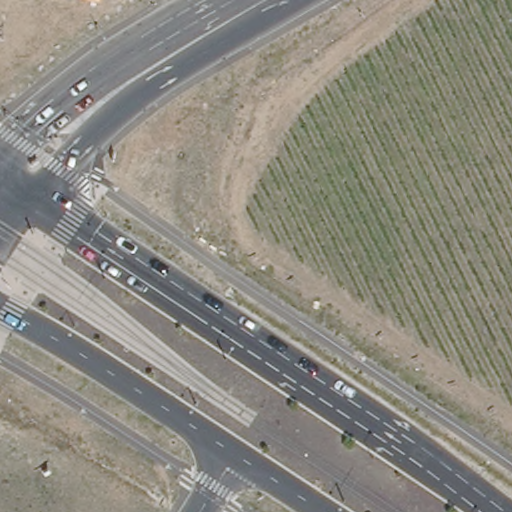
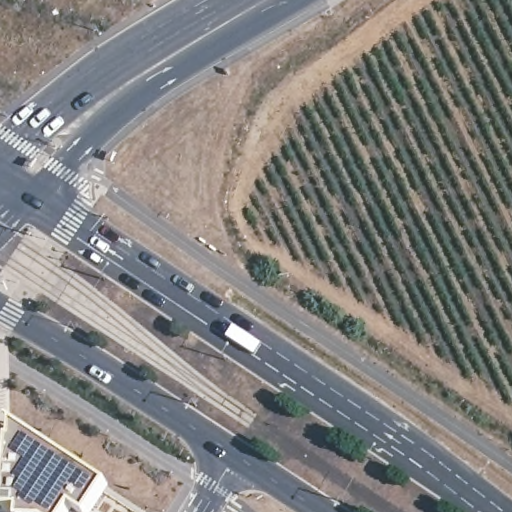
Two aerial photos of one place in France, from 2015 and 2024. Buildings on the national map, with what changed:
new [(15,444),(15,426),(108,488),(104,494),(92,512),(78,512),(75,510),(73,512),(6,512),(10,443),(15,444)]
new [(6,512),(0,511),(0,443),(10,443),(6,512)]
new [(104,494),(132,512),(92,512),(104,494)]
new [(75,510),(78,512),(73,512),(75,510)]

